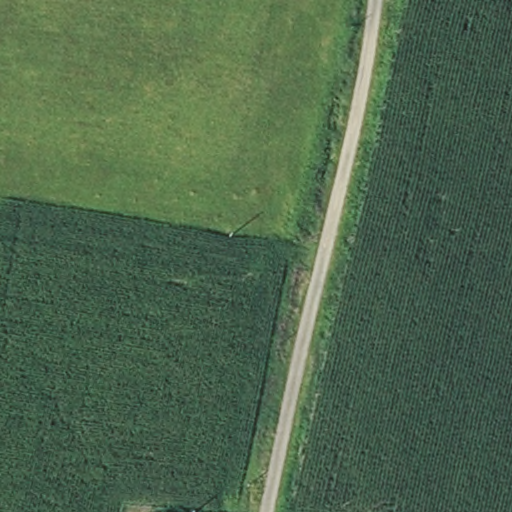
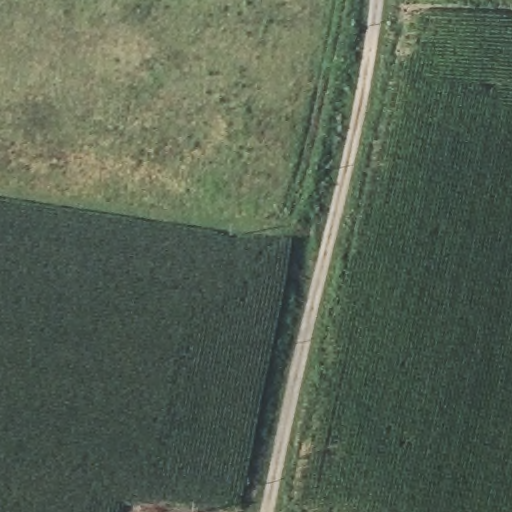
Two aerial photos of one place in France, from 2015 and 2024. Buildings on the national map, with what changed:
[]

